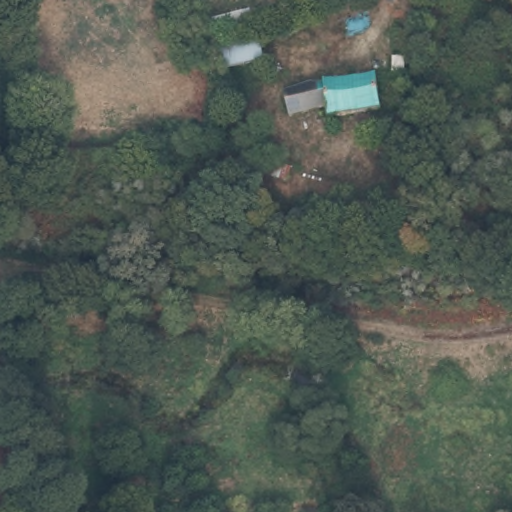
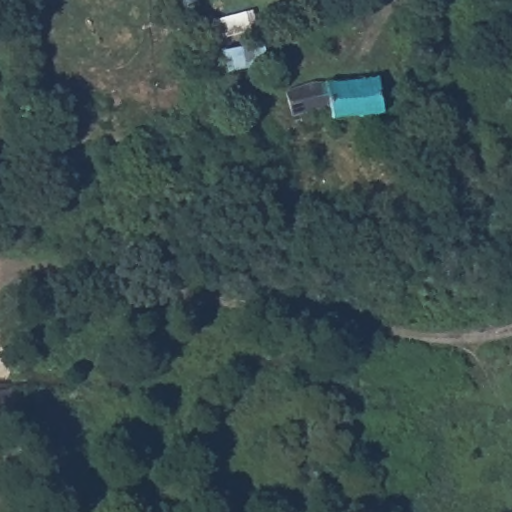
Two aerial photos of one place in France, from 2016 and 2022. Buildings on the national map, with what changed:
unchanged [(213,39),(208,21),(252,9),(256,26),(213,39)]
unchanged [(337,113),(330,114),(326,101),(313,104),(283,113),(277,88),(304,79),(369,74),(373,114),(337,113)]

